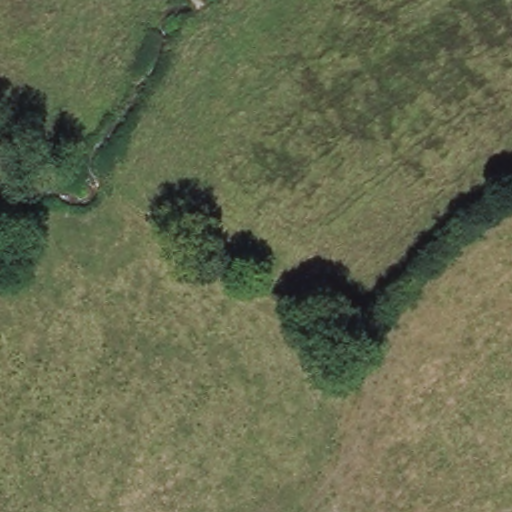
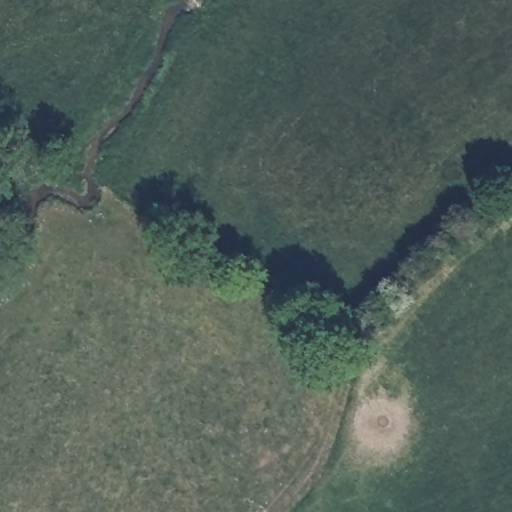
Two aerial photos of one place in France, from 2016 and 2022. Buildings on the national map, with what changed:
[]

